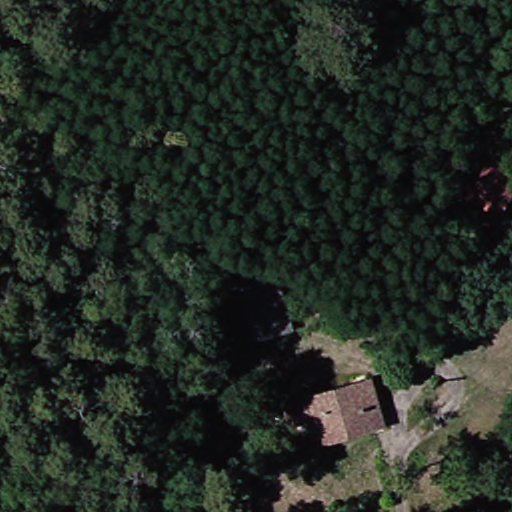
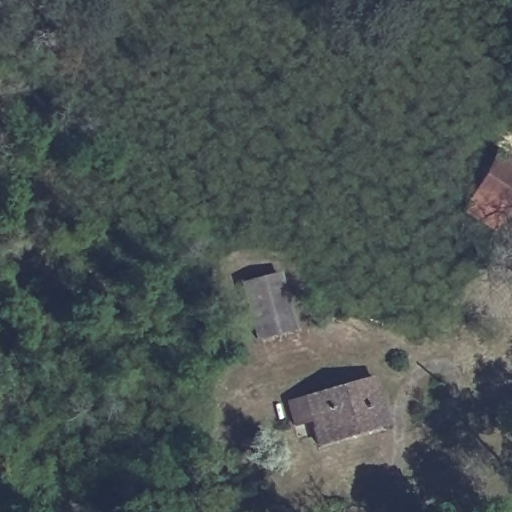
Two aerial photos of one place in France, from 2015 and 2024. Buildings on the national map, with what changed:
unchanged [(463,204),(475,187),(491,161),(500,148),(512,155),(512,191),(503,205),(492,222),(463,204)]
unchanged [(297,328),(278,333),(258,339),(244,287),(282,277),(293,312),(297,328)]
unchanged [(327,438),(303,445),(297,419),(277,423),(272,402),(361,376),(372,416),(375,425),(327,438)]

